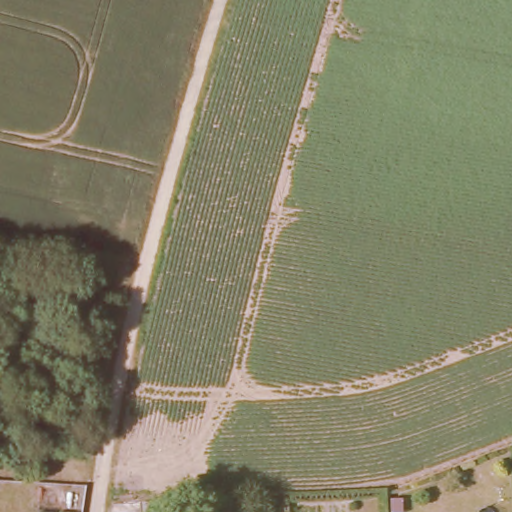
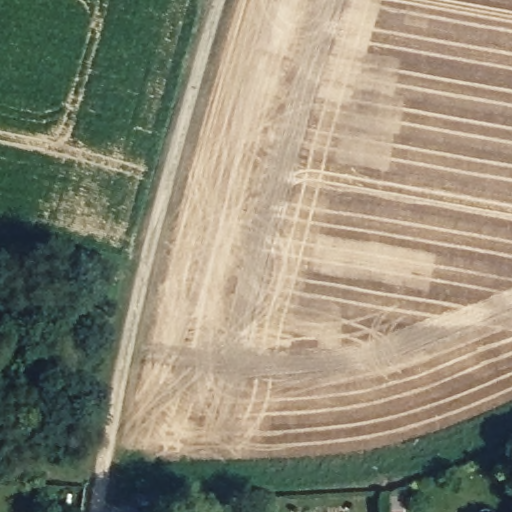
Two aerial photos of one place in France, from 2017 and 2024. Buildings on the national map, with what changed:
unchanged [(143,512),(142,504),(175,502),(175,506),(183,506),(184,512),(143,512)]

